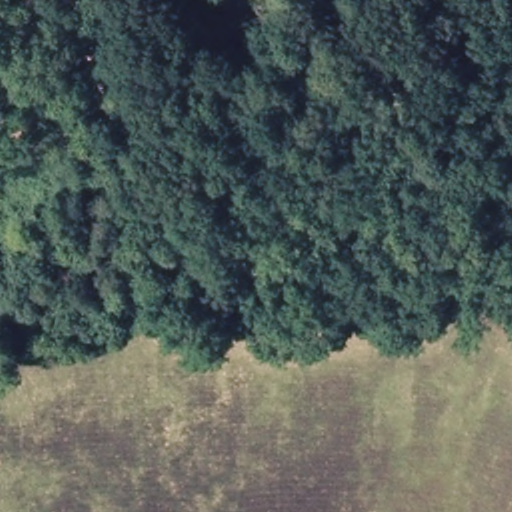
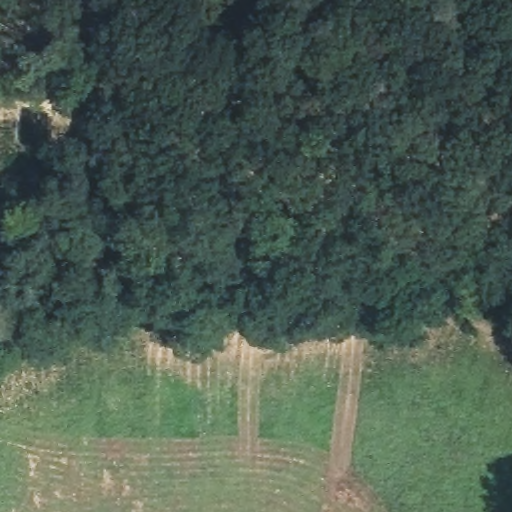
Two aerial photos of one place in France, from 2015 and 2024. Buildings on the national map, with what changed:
[]

